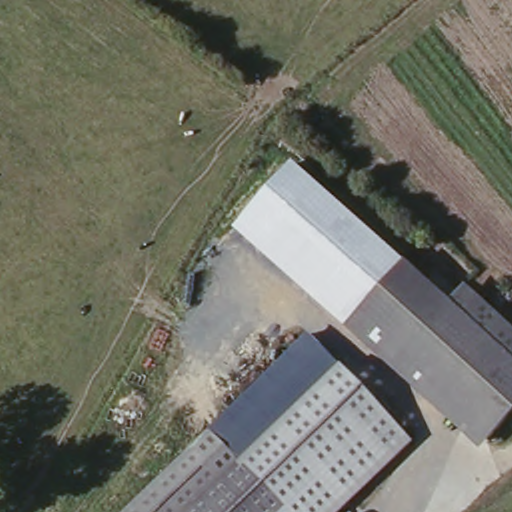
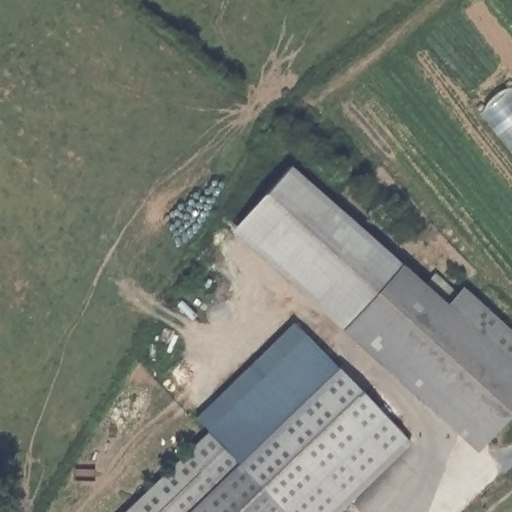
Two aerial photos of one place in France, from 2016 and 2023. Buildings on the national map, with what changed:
new [(511,80),(512,82),(512,161),(474,114),(511,80)]
unchanged [(231,231),(288,166),(404,266),(343,333),(231,231)]
unchanged [(407,263),(512,361),(512,415),(476,456),(343,333),(407,263)]
unchanged [(464,286),(512,331),(512,361),(450,302),(464,286)]
unchanged [(311,342),(340,368),(413,442),(341,512),(288,512),(241,463),(215,435),(311,342)]
unchanged [(288,512),(130,512),(215,435),(288,512)]

